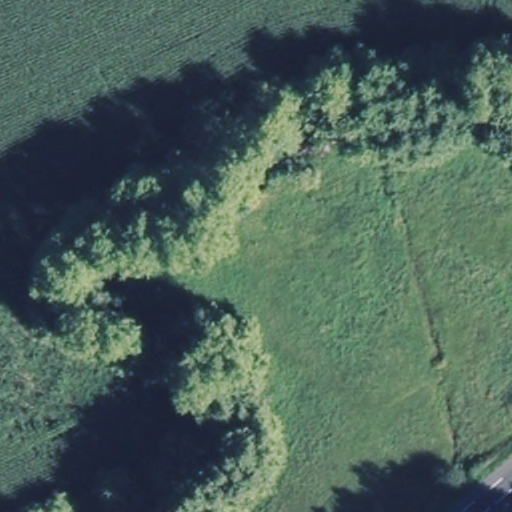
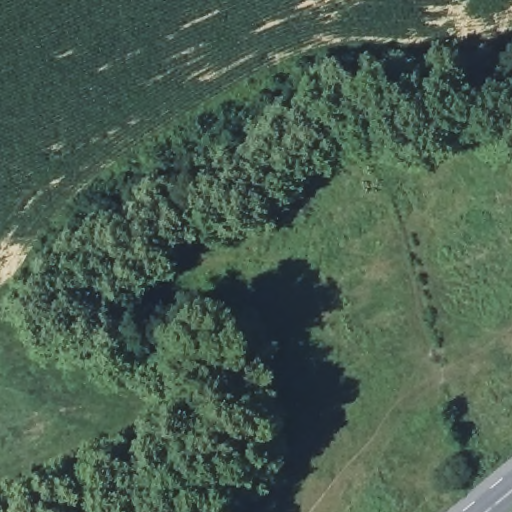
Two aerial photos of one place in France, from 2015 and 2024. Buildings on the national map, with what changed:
[]

